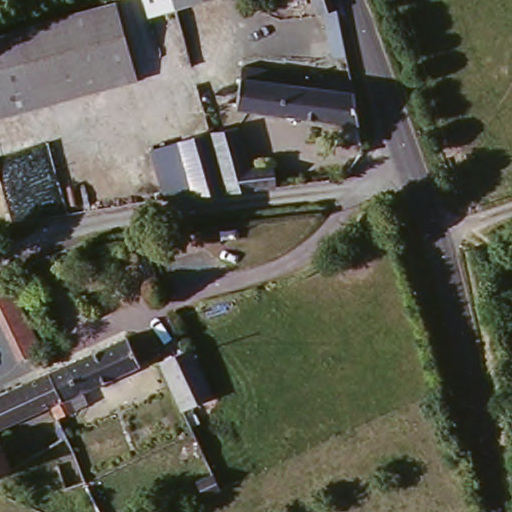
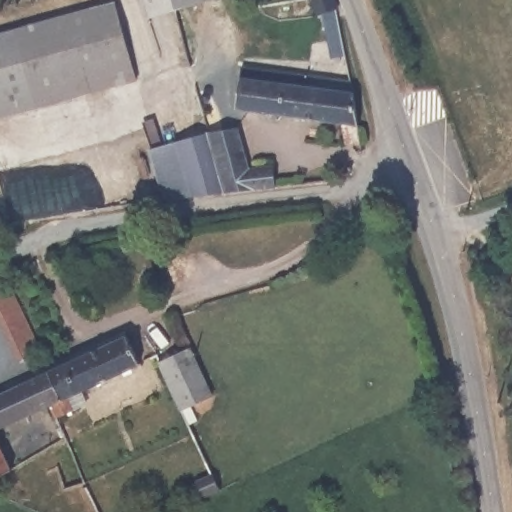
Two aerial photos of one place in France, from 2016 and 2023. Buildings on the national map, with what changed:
unchanged [(0,124),(0,34),(113,0),(137,85),(0,124)]
unchanged [(170,0),(181,0),(171,2),(170,0)]
unchanged [(307,10),(304,0),(329,0),(331,3),(307,10)]
unchanged [(356,130),(235,111),(240,67),(347,81),(356,130)]
unchanged [(205,126),(220,190),(191,195),(175,135),(205,126)]
unchanged [(239,130),(250,169),(277,164),(282,187),(221,197),(220,190),(205,126),(239,130)]
unchanged [(191,195),(157,201),(142,145),(175,135),(191,195)]
unchanged [(30,355),(0,294),(0,290),(15,284),(46,348),(30,355)]
unchanged [(36,379),(118,338),(132,368),(43,411),(0,434),(0,398),(36,379)]
unchanged [(179,409),(157,361),(174,352),(181,354),(187,347),(210,395),(202,405),(179,409)]
unchanged [(0,478),(0,466),(4,475),(0,478)]
unchanged [(189,480),(212,469),(220,487),(201,495),(189,480)]
unchanged [(2,486),(0,487),(0,482),(2,486)]
unchanged [(122,511),(122,512),(121,512),(122,511)]

